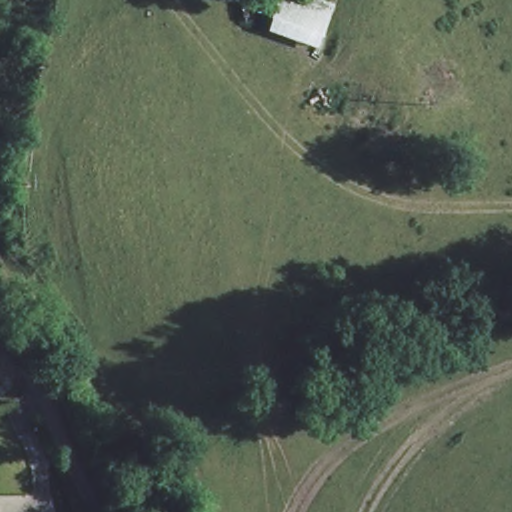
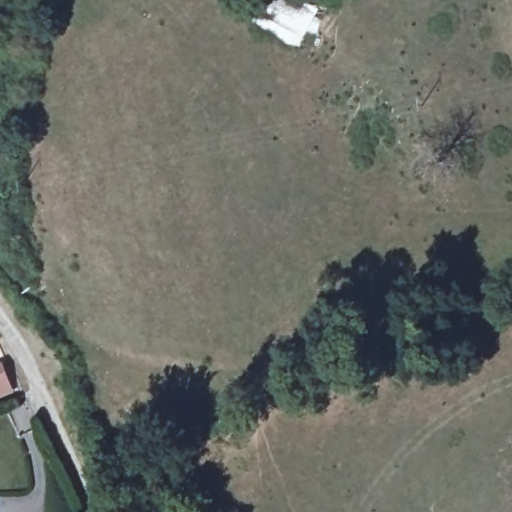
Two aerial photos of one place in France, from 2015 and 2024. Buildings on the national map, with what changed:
unchanged [(329,2),(323,36),(270,18),(274,0),(321,0),(329,2)]
new [(5,364),(15,395),(0,400),(0,366),(5,364)]

